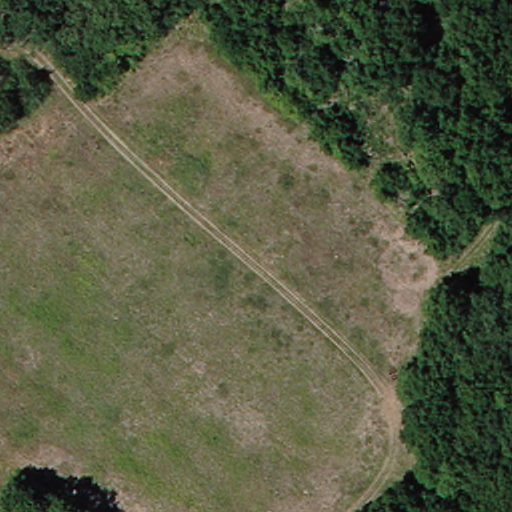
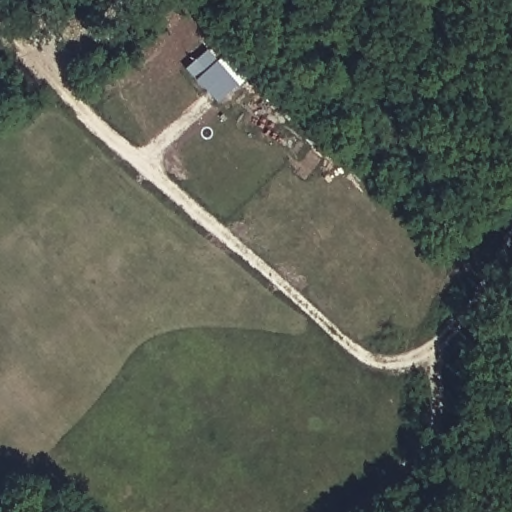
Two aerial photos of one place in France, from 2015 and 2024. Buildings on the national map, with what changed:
new [(208,50),(238,86),(216,104),(186,69),(208,50)]

